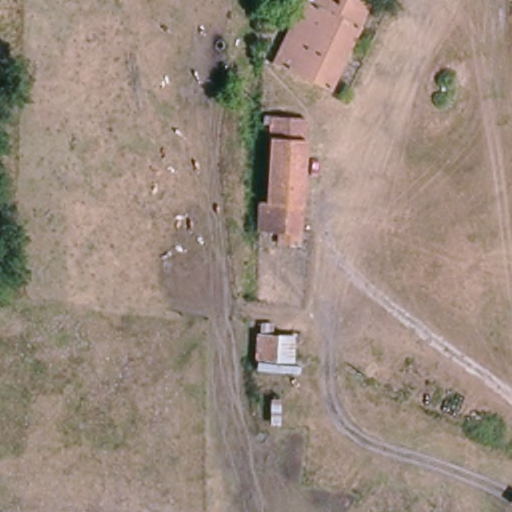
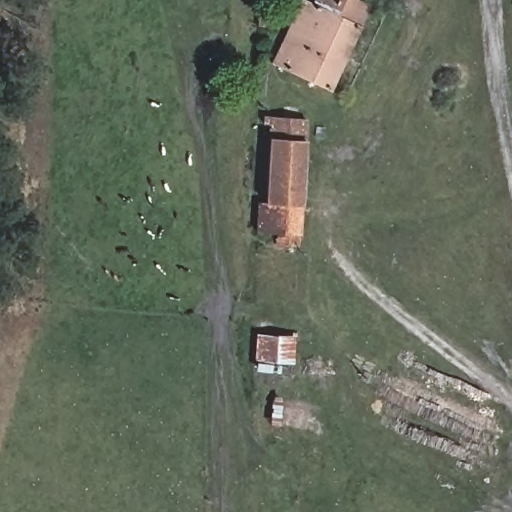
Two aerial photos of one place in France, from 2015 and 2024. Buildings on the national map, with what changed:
unchanged [(356,0),(369,6),(327,91),(271,66),(304,0),(356,0)]
unchanged [(303,123),(300,235),(263,234),(268,123),(303,123)]
unchanged [(257,334),(293,334),(292,370),(256,369),(257,334)]

